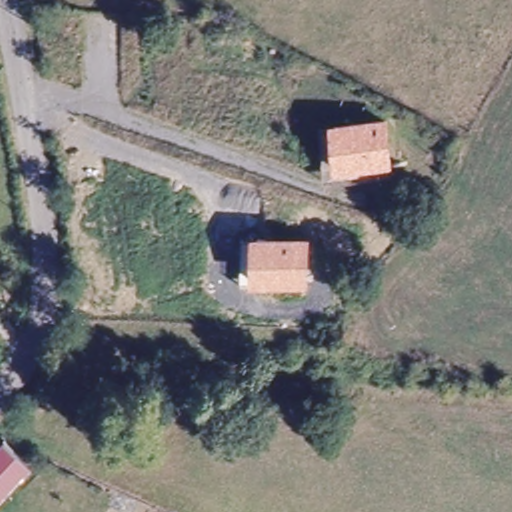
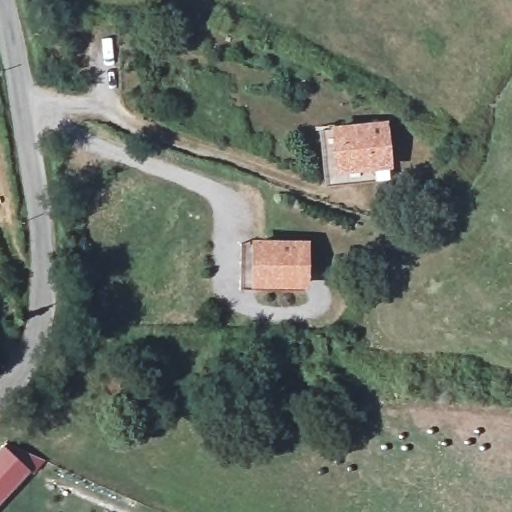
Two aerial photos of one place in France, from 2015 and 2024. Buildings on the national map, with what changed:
unchanged [(387,119),(391,169),(323,176),(323,150),(331,148),(328,125),(387,119)]
unchanged [(311,236),(308,288),(247,288),(249,243),(250,235),(311,236)]
unchanged [(29,472),(0,504),(0,447),(2,444),(29,472)]

